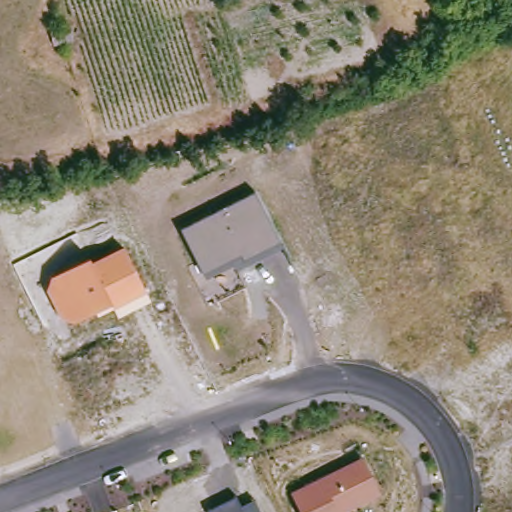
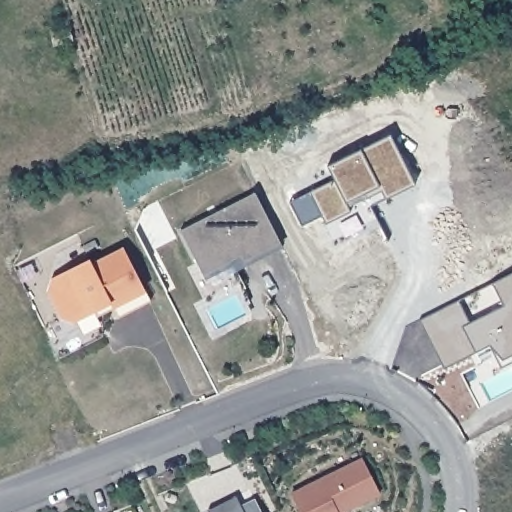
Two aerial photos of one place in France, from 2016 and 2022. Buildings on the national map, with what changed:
new [(367,196),(365,192),(348,200),(352,209),(327,222),(310,190),(335,178),(327,164),(391,132),(416,182),(386,197),(372,204),(367,196)]
unchanged [(242,266),(240,259),(205,275),(182,232),(257,195),(282,246),(242,266)]
unchanged [(153,304),(121,320),(116,310),(111,304),(78,324),(63,321),(50,297),(52,282),(92,259),(95,265),(125,248),(149,292),(153,304)]
new [(506,362),(496,342),(447,367),(423,319),(512,275),(512,359),(506,362)]
unchanged [(344,512),(303,512),(293,493),(363,457),(382,494),(344,512)]
unchanged [(211,509),(235,498),(238,504),(253,499),(261,512),(213,512),(211,509)]

